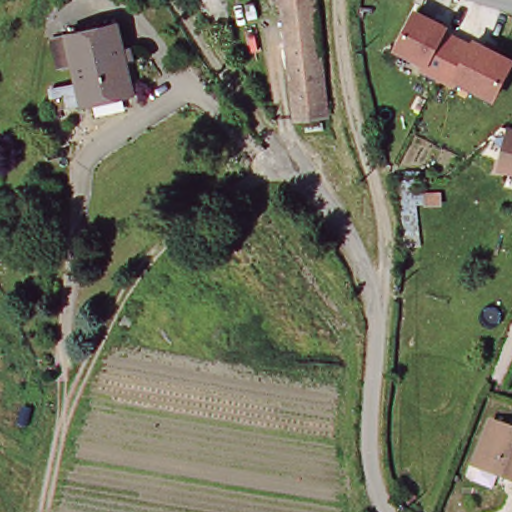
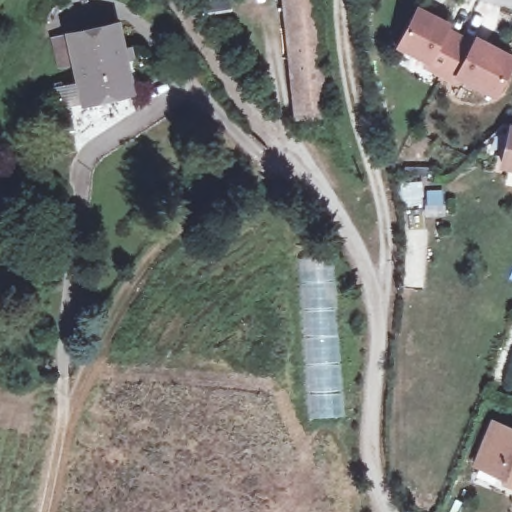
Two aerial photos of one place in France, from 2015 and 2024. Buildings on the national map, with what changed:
unchanged [(235,12),(208,16),(206,0),(233,0),(235,12)]
unchanged [(452,29),(475,40),(477,35),(512,53),(512,72),(499,99),(466,82),(464,88),(425,69),(429,64),(396,46),(417,5),(455,23),(452,29)]
unchanged [(317,7),(325,106),(297,108),(289,9),(317,7)]
unchanged [(135,92),(87,102),(65,106),(59,107),(55,83),(60,82),(82,78),(80,62),(64,65),(58,34),(74,31),(123,22),(135,92)]
unchanged [(305,112),(322,111),(322,121),(305,122),(305,112)]
unchanged [(512,149),(512,166),(507,165),(512,149)]
new [(310,420),(297,258),(329,255),(342,417),(310,420)]
unchanged [(512,480),(477,467),(494,424),(512,431),(512,480)]

